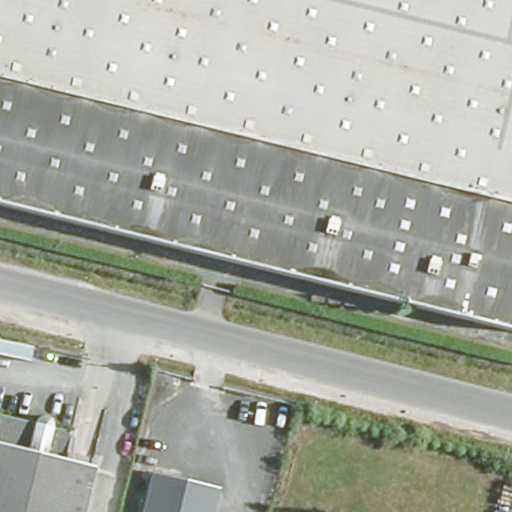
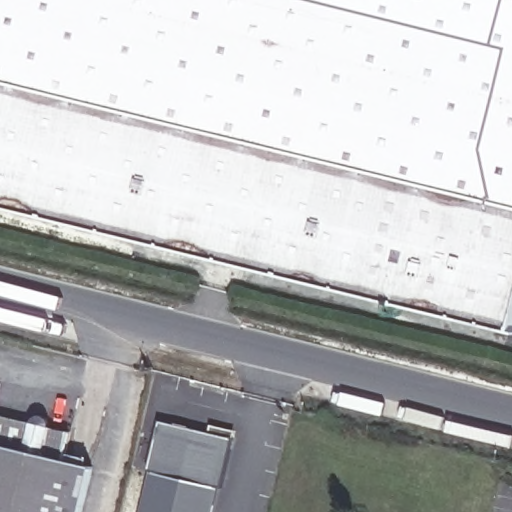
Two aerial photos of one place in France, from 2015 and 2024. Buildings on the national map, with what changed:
unchanged [(0,209),(0,0),(512,0),(512,331),(0,209)]
unchanged [(31,413),(34,411),(41,410),(48,411),(53,415),(54,425),(67,428),(63,453),(95,461),(83,512),(0,512),(0,410),(27,417),(31,413)]
new [(161,422),(210,433),(212,426),(234,431),(232,439),(222,485),(153,469),(161,422)]
unchanged [(222,485),(215,512),(143,512),(153,469),(222,485)]

